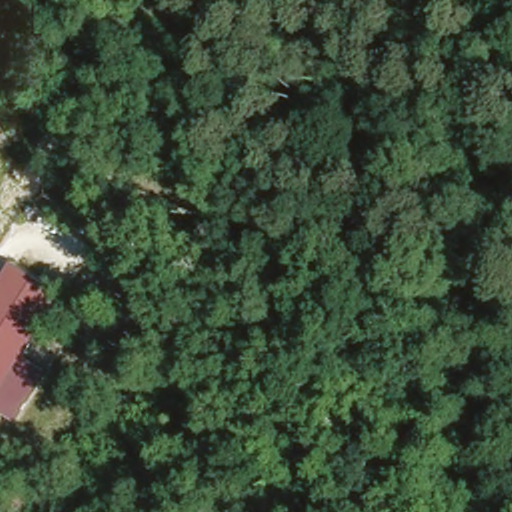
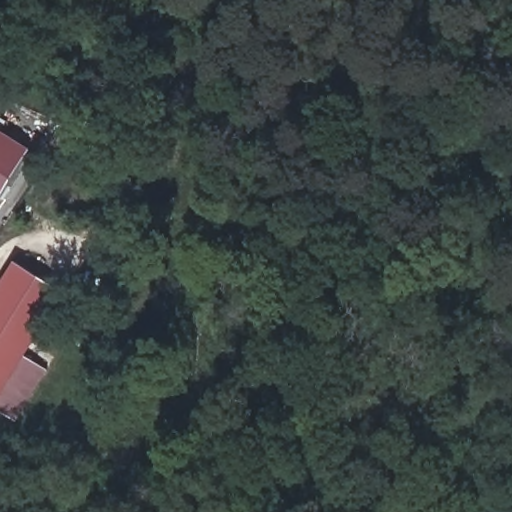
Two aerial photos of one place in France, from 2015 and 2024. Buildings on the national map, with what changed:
new [(29,152),(0,197),(0,134),(29,152)]
unchanged [(26,355),(51,370),(18,421),(0,411),(0,287),(17,260),(66,291),(26,355)]

